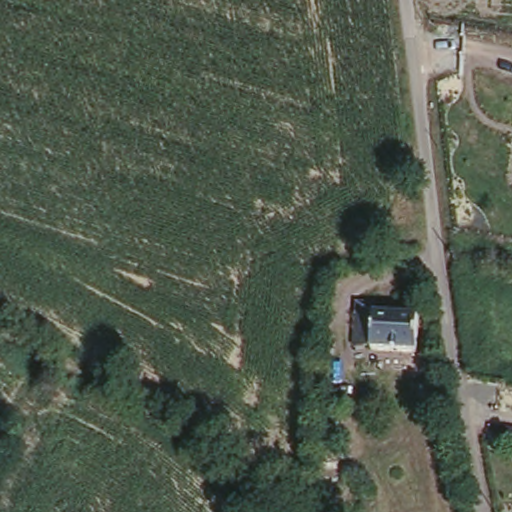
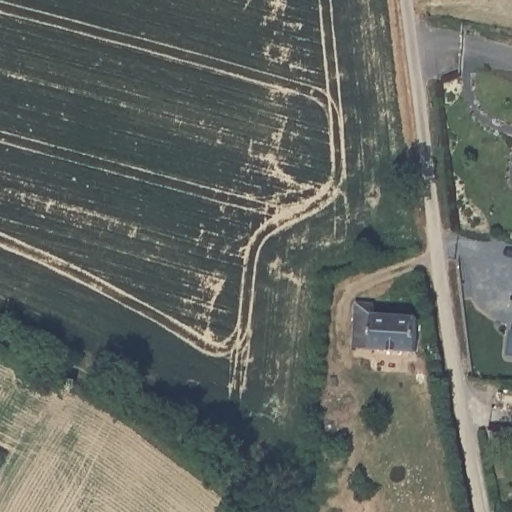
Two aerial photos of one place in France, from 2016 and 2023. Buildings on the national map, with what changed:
unchanged [(369,328),(370,300),(389,300),(389,310),(431,315),(428,349),(386,345),(368,343),(369,328)]
unchanged [(512,325),(512,355),(507,354),(510,325),(512,325)]

